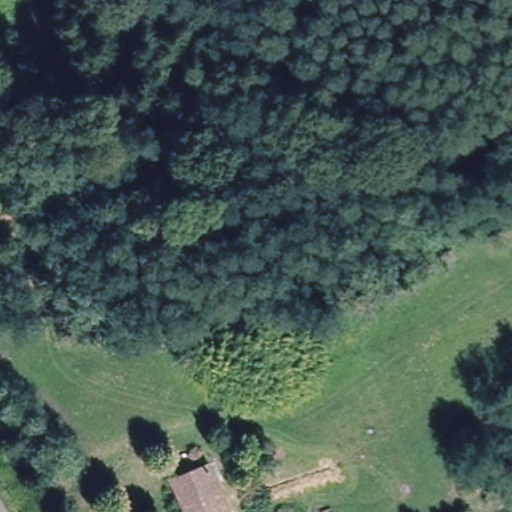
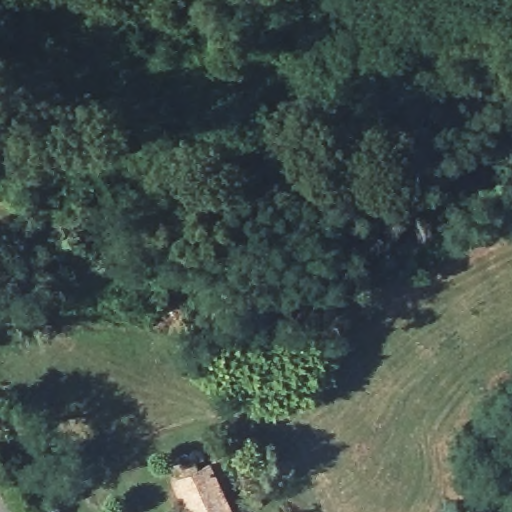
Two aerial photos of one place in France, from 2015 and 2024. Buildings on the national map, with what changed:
unchanged [(173,481),(187,472),(182,464),(192,459),(200,472),(209,466),(232,512),(187,512),(173,481)]

